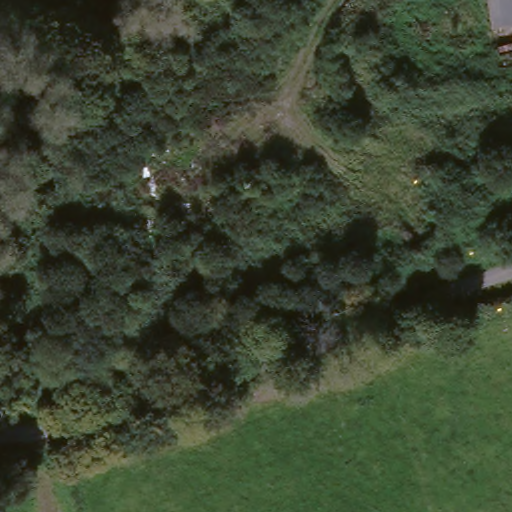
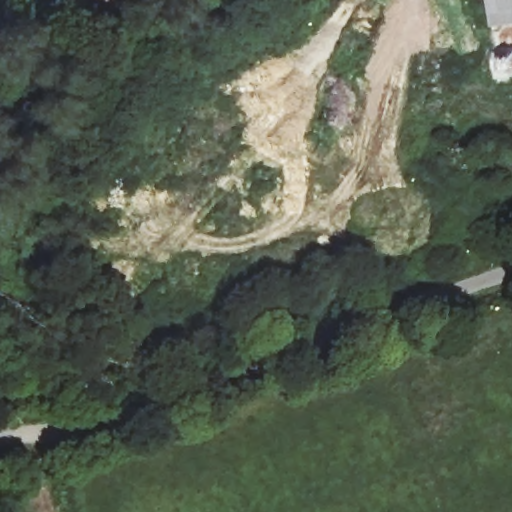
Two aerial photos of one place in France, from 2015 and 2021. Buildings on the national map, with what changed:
unchanged [(485,27),(482,0),(512,0),(512,23),(485,27)]

